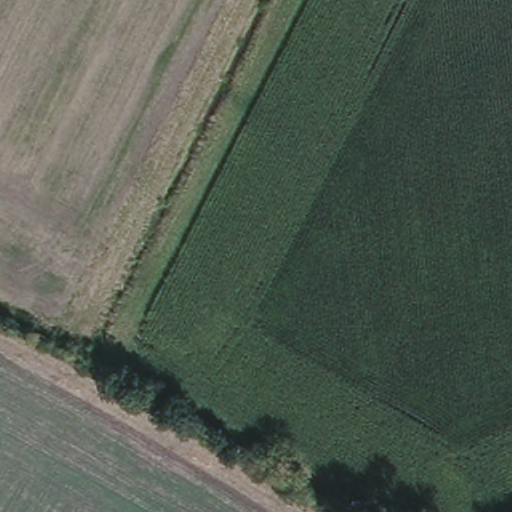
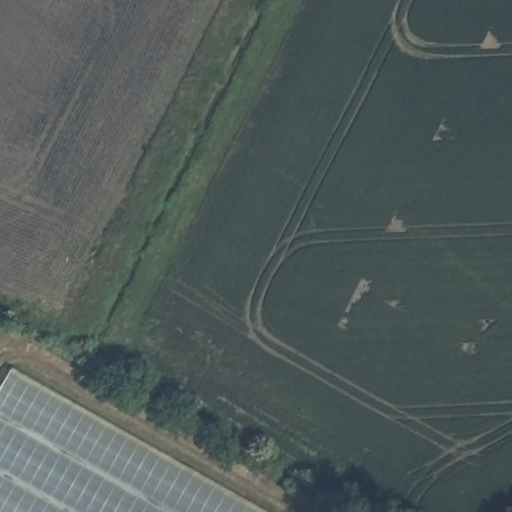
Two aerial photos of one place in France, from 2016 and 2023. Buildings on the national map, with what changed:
new [(0,390),(12,369),(271,512),(0,512),(0,390)]

